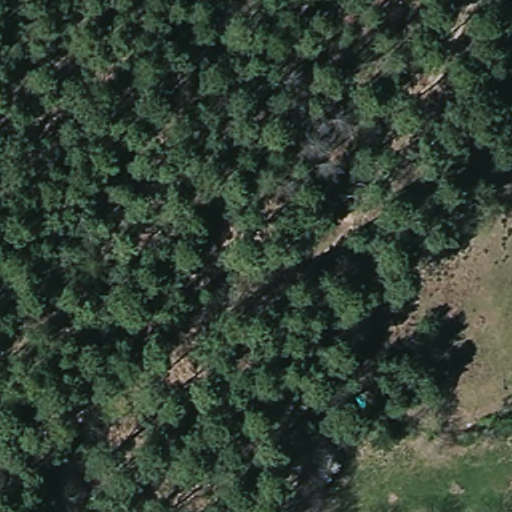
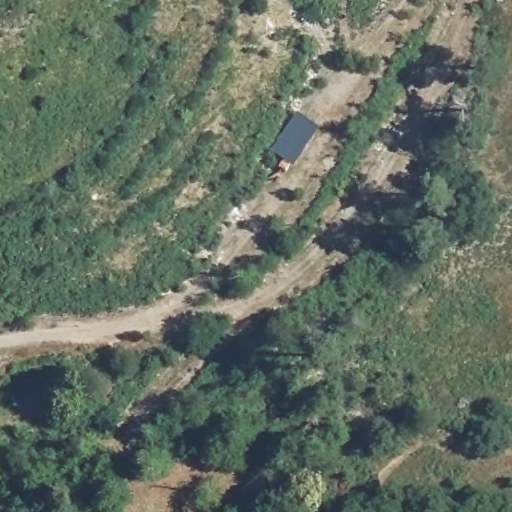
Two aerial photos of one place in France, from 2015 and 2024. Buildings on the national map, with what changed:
new [(321,128),(294,166),(271,150),(298,111),(321,128)]

